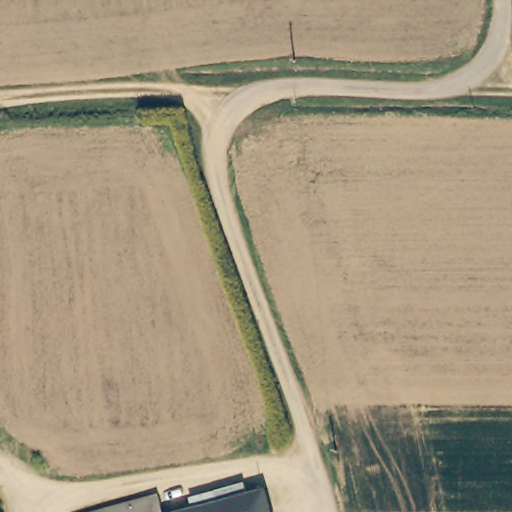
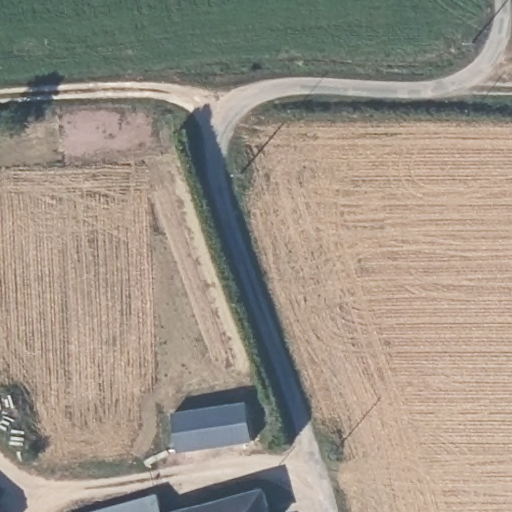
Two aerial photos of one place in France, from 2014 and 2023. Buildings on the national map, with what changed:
new [(252,441),(178,452),(172,412),(245,402),(252,441)]
unchanged [(264,490),(270,512),(183,512),(264,490)]
unchanged [(149,498),(153,512),(98,512),(149,498)]
unchanged [(1,512),(0,512),(0,510),(1,512)]

